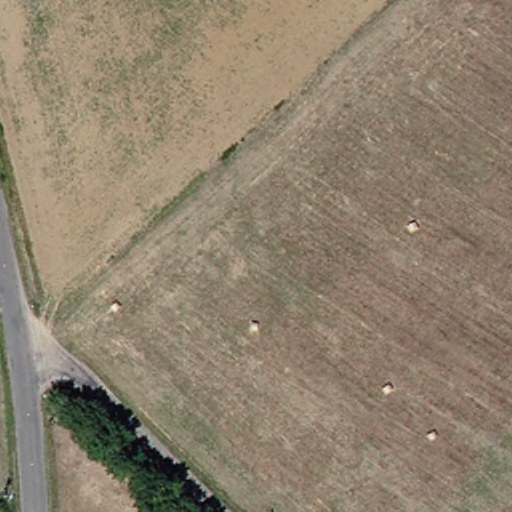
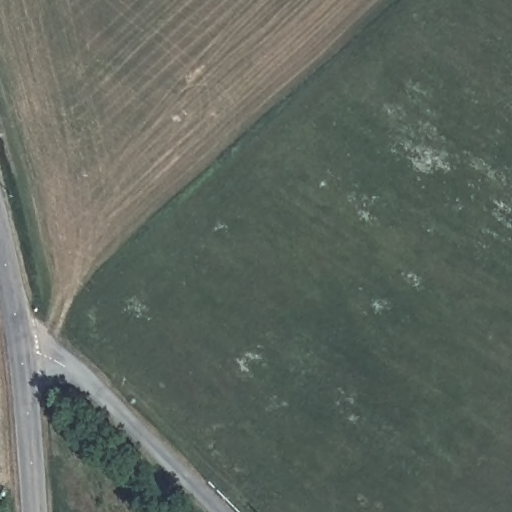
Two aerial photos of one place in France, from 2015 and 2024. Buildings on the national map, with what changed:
[]

